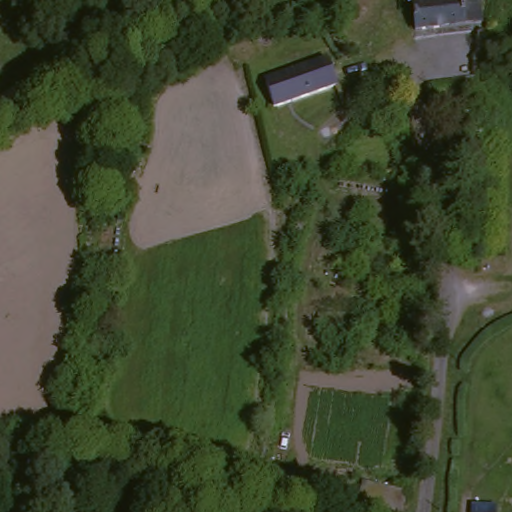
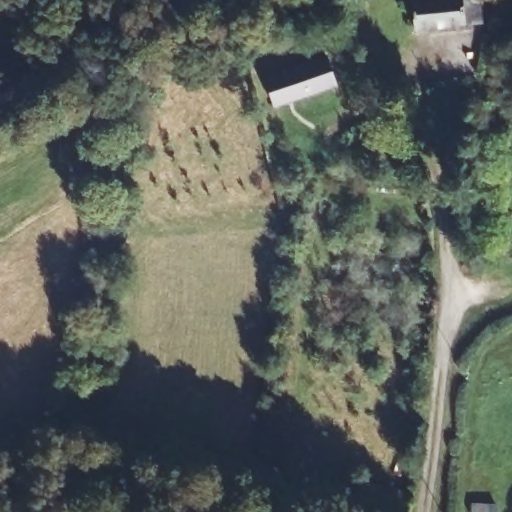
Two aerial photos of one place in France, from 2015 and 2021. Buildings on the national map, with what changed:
unchanged [(466,26),(401,32),(403,2),(468,3),(466,26)]
unchanged [(267,107),(258,84),(323,62),(333,86),(267,107)]
unchanged [(247,460),(268,461),(266,496),(258,496),(257,503),(243,502),(243,495),(247,460)]
unchanged [(343,495),(345,463),(394,467),(391,512),(323,512),(324,493),(343,495)]

